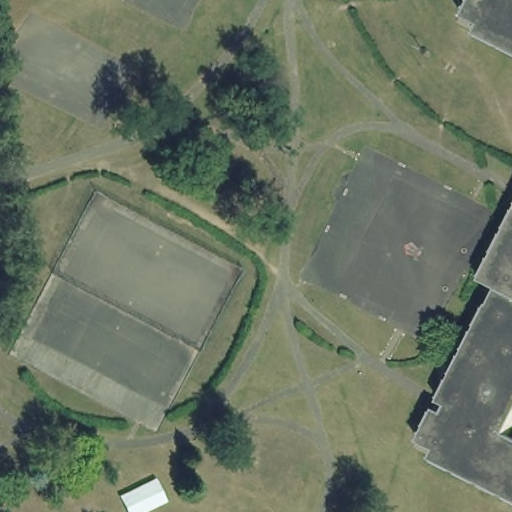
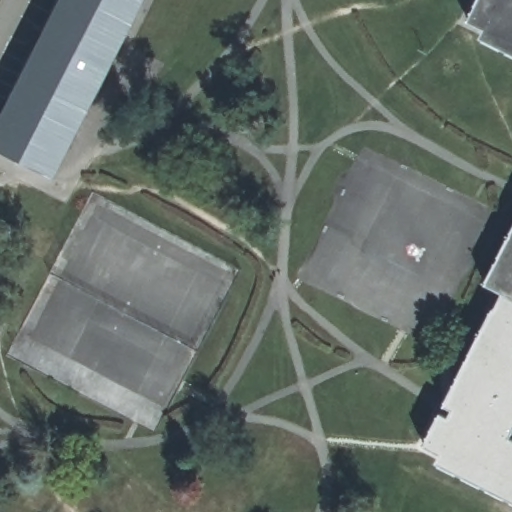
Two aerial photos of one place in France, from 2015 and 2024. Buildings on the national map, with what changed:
new [(0,149),(0,118),(59,0),(144,0),(55,174),(0,149)]
unchanged [(485,25),(467,15),(475,0),(512,0),(512,51),(480,36),(485,25)]
unchanged [(441,450),(423,441),(506,292),(484,279),(512,224),(512,499),(439,460),(441,450)]

